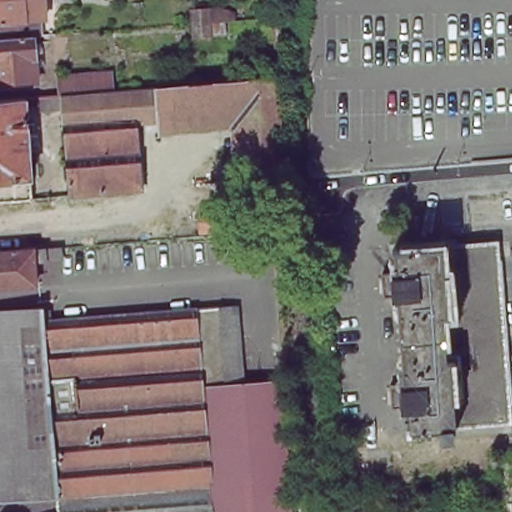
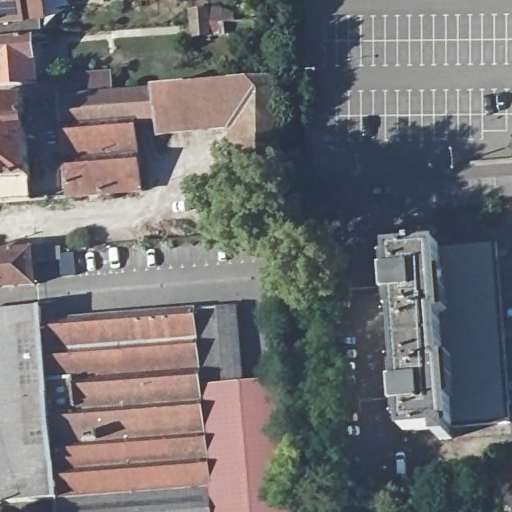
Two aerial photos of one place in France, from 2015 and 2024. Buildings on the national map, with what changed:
unchanged [(40,2),(42,18),(37,19),(38,35),(29,36),(0,39),(0,0),(37,0),(40,2)]
unchanged [(211,34),(210,21),(209,8),(217,7),(234,5),(235,19),(236,32),(211,34)]
unchanged [(0,84),(0,39),(29,36),(32,81),(0,84)]
unchanged [(280,179),(232,182),(232,128),(160,134),(158,122),(136,125),(142,190),(70,195),(62,108),(40,110),(39,95),(55,93),(53,79),(85,77),(86,91),(282,75),(280,179)]
unchanged [(32,199),(0,202),(0,98),(26,96),(32,199)]
unchanged [(493,239),(507,422),(466,425),(450,242),(493,239)]
unchanged [(450,242),(466,425),(448,426),(450,437),(435,439),(434,427),(402,430),(388,247),(450,242)]
unchanged [(0,250),(30,248),(57,246),(57,259),(31,260),(32,283),(0,286),(0,250)]
unchanged [(240,381),(280,378),(287,476),(290,512),(55,512),(54,496),(40,319),(232,304),(240,381)]
unchanged [(40,319),(54,496),(0,501),(0,310),(39,308),(40,319)]

